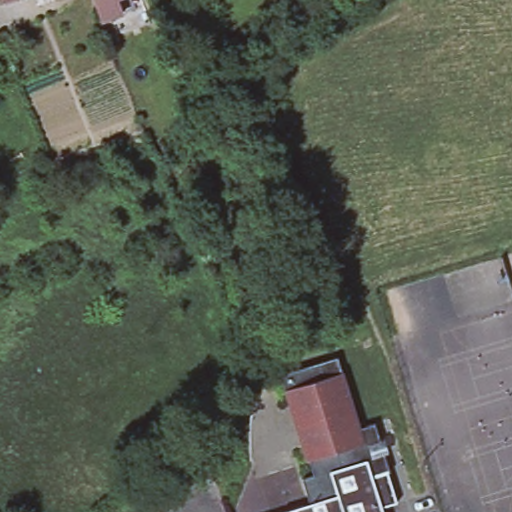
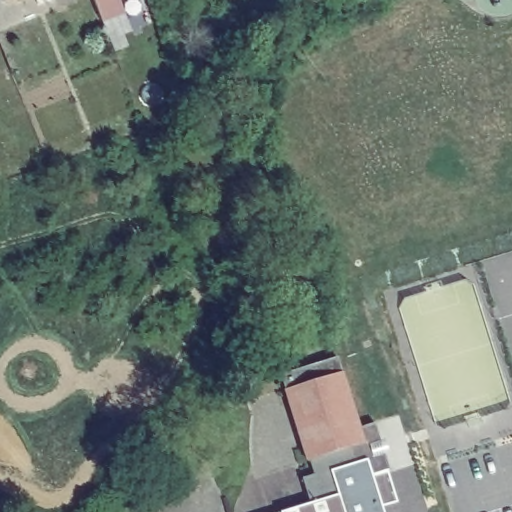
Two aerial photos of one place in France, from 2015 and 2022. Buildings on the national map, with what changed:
unchanged [(125,14),(104,23),(95,0),(120,0),(125,14)]
unchanged [(305,478),(316,475),(291,391),(289,390),(284,374),(340,357),(344,372),(342,374),(359,427),(377,422),(392,469),(389,470),(399,501),(384,506),(386,512),(285,512),(312,503),(305,478)]

